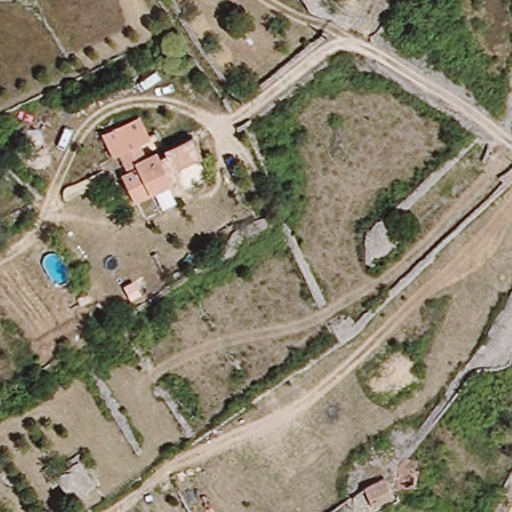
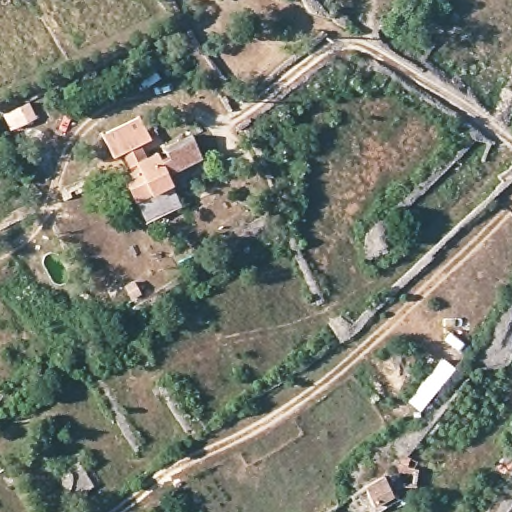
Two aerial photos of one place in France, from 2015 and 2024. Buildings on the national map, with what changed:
unchanged [(153,139),(141,145),(148,158),(160,152),(175,183),(137,202),(124,177),(131,173),(121,155),(115,158),(106,141),(144,121),(153,139)]
unchanged [(68,497),(54,469),(77,456),(91,485),(68,497)]
unchanged [(353,496),(371,483),(382,498),(365,512),(353,496)]

